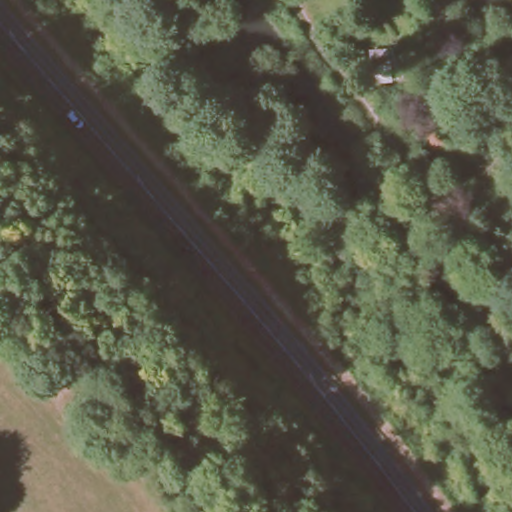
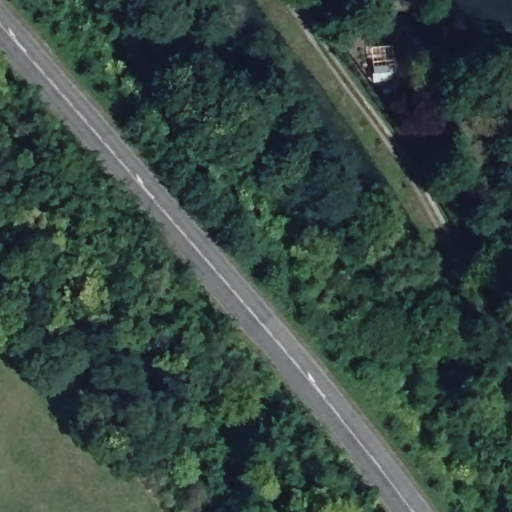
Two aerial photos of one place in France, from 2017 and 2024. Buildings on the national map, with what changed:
unchanged [(390,84),(373,83),(373,44),(390,46),(390,84)]

